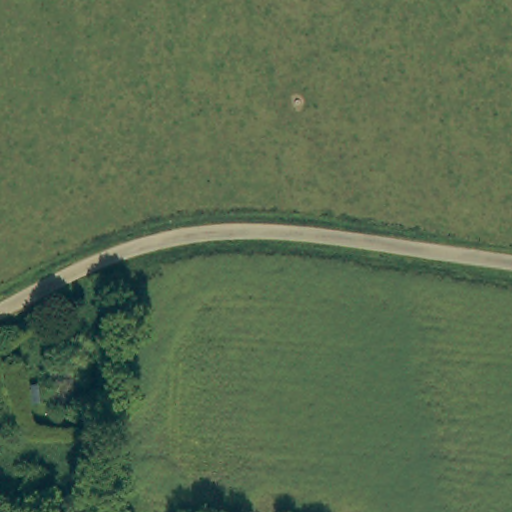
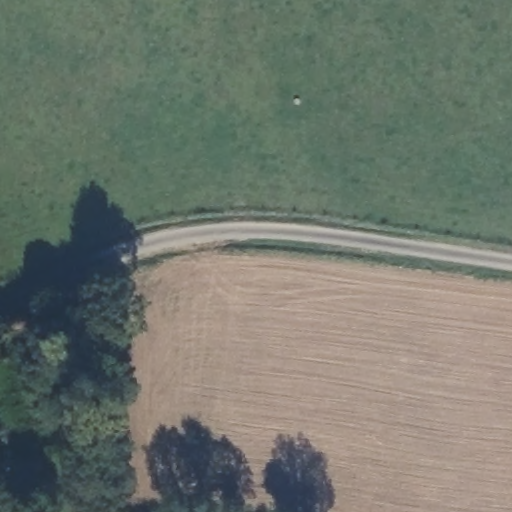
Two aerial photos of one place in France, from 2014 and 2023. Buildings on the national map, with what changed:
[]

